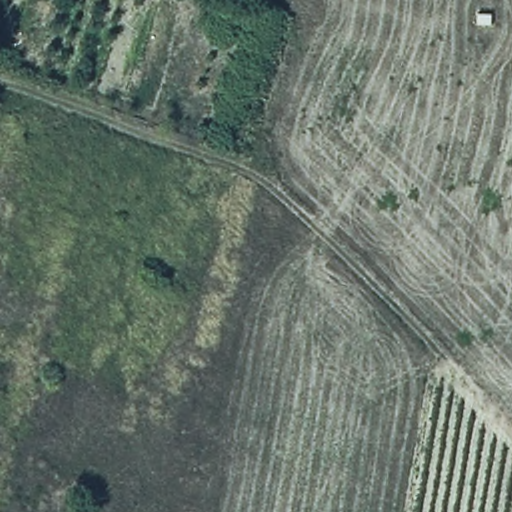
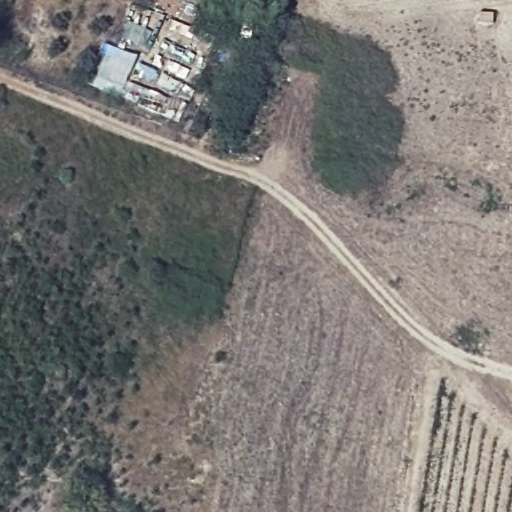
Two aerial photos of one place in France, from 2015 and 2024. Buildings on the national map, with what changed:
unchanged [(492,5),(491,21),(475,21),(475,5),(492,5)]

